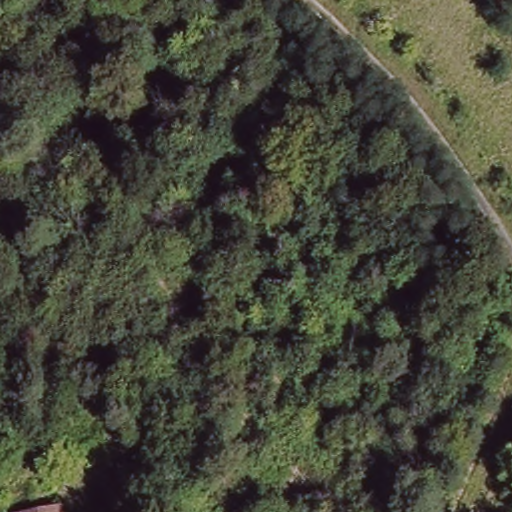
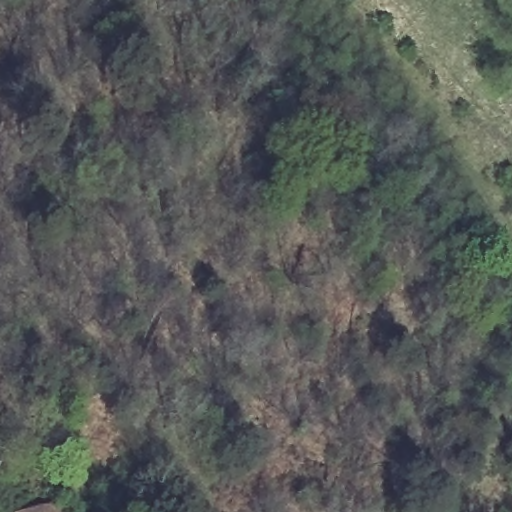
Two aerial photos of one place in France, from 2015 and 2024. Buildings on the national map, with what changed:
unchanged [(72,512),(24,512),(24,511),(42,509),(72,507),(72,512)]

